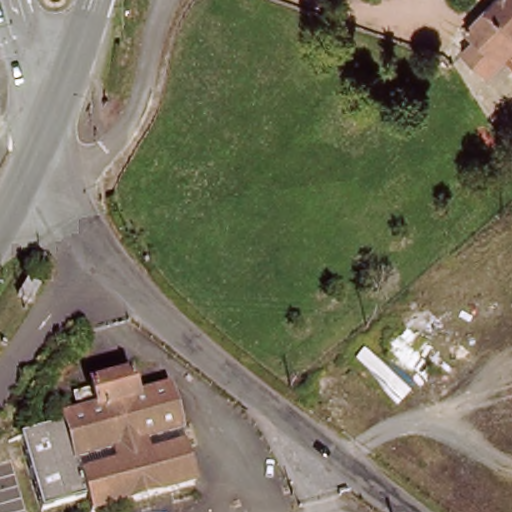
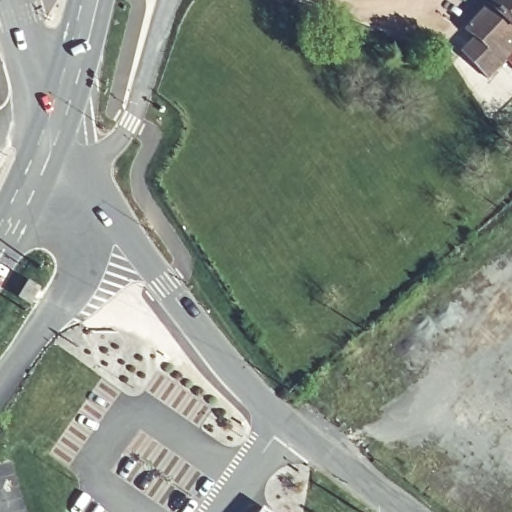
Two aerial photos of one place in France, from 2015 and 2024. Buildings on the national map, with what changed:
unchanged [(485,0),(512,0),(512,56),(502,66),(485,84),(455,54),(467,41),(457,31),(485,0)]
unchanged [(22,294),(28,284),(37,290),(31,299),(22,294)]
demolished [(0,335),(0,326),(2,323),(12,329),(5,339),(0,335)]
demolished [(24,439),(64,428),(63,422),(75,418),(70,400),(88,397),(88,392),(126,381),(132,404),(168,395),(193,489),(103,512),(80,512),(77,505),(49,512),(43,512),(24,439)]
new [(262,506),(272,512),(258,512),(262,506)]

